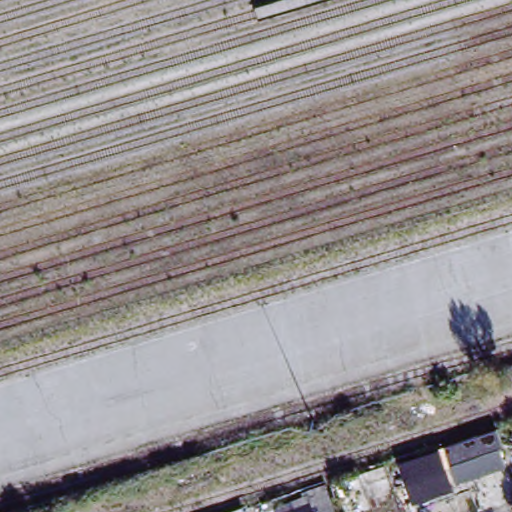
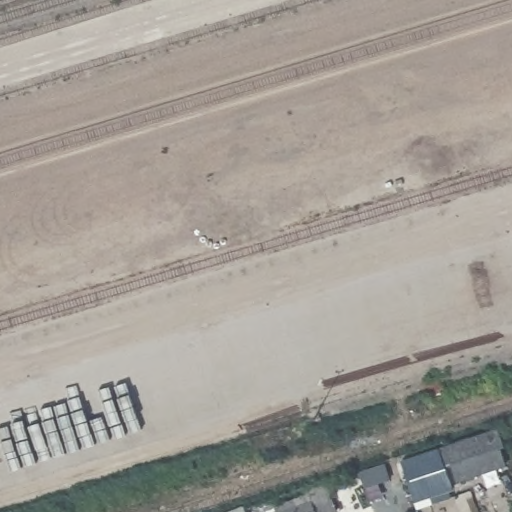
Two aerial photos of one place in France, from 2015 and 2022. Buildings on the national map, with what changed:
unchanged [(396,464),(445,447),(493,431),(493,433),(505,468),(456,484),(451,468),(405,483),(402,474),(399,475),(396,464)]
unchanged [(512,459),(510,453),(512,453),(512,459)]
unchanged [(395,493),(378,499),(381,508),(370,512),(363,512),(360,505),(342,511),(334,485),(386,467),(395,493)]
unchanged [(337,512),(264,512),(262,507),(273,503),(275,508),(303,498),(301,493),(301,492),(305,491),(327,483),(337,512)]

